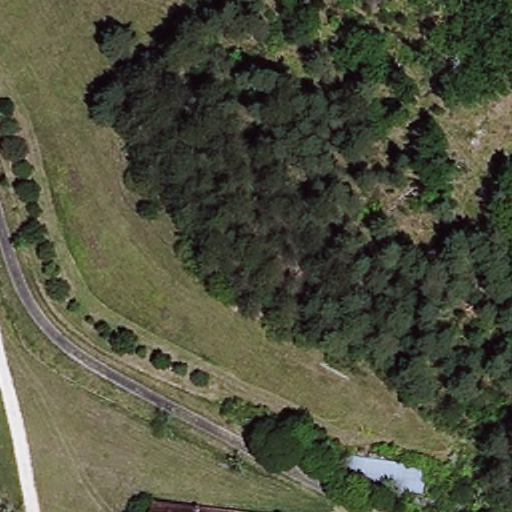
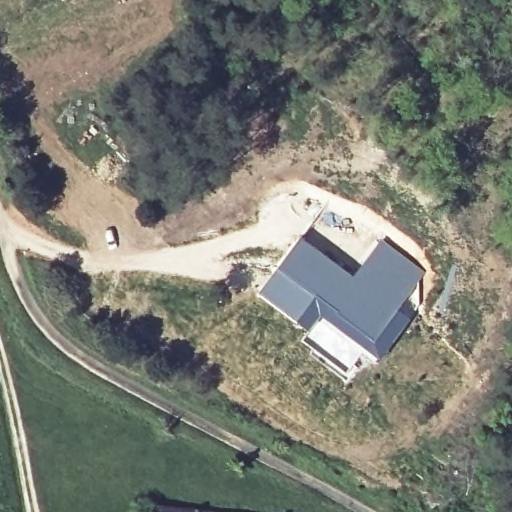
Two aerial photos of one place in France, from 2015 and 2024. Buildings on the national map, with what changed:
new [(300,236),(352,274),(381,237),(427,271),(407,300),(418,309),(379,360),(320,317),(308,332),(256,294),(300,236)]
unchanged [(364,442),(442,496),(429,512),(414,512),(345,468),(364,442)]
unchanged [(175,512),(149,512),(150,510),(175,512)]

